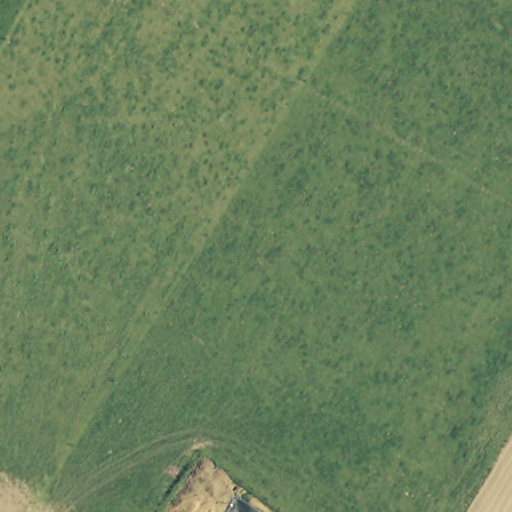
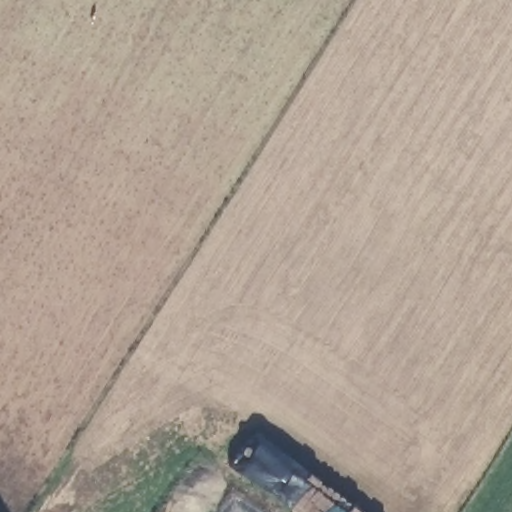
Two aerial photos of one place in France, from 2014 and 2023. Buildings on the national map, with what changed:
[]

